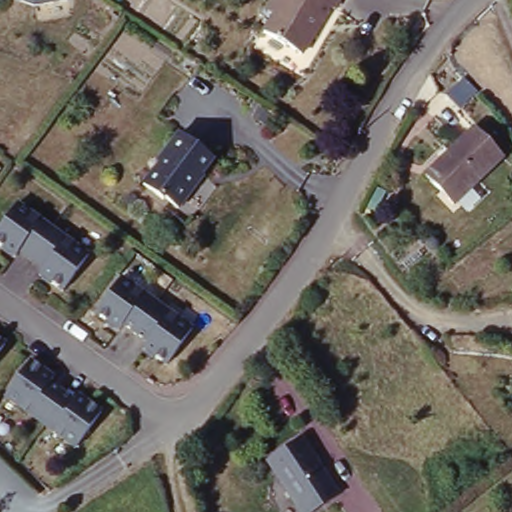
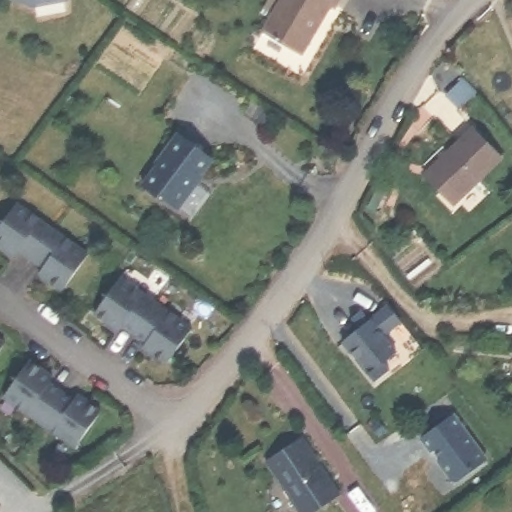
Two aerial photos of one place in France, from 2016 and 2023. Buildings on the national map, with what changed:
unchanged [(39,5),(13,0),(60,0),(39,5)]
unchanged [(86,0),(92,0),(90,3),(86,0)]
unchanged [(338,13),(333,10),(307,55),(266,31),(286,0),(345,0),(338,13)]
unchanged [(476,131),(504,160),(457,204),(430,175),(476,131)]
unchanged [(209,155),(200,170),(205,173),(182,207),(168,198),(164,205),(142,189),(159,166),(153,161),(175,133),(209,155)]
unchanged [(84,260),(58,297),(34,280),(38,274),(14,256),(10,262),(0,255),(0,227),(13,210),(84,260)]
unchanged [(118,281),(189,332),(163,368),(140,352),(144,346),(119,329),(115,335),(92,317),(118,281)]
new [(350,353),(358,348),(349,337),(360,330),(351,318),(358,312),(366,325),(388,307),(400,321),(381,336),(394,352),(381,363),(388,372),(373,380),(350,353)]
unchanged [(0,350),(0,349),(1,350),(0,350)]
unchanged [(28,365),(51,382),(47,387),(71,405),(76,400),(99,416),(73,452),(1,401),(28,365)]
new [(423,439),(455,415),(478,446),(489,462),(486,463),(460,482),(453,481),(440,462),(433,453),(423,439)]
unchanged [(313,512),(293,512),(279,495),(259,470),(267,463),(292,442),(334,495),(313,512)]

